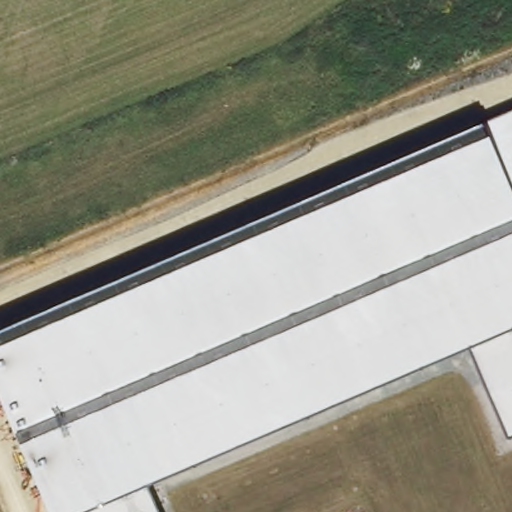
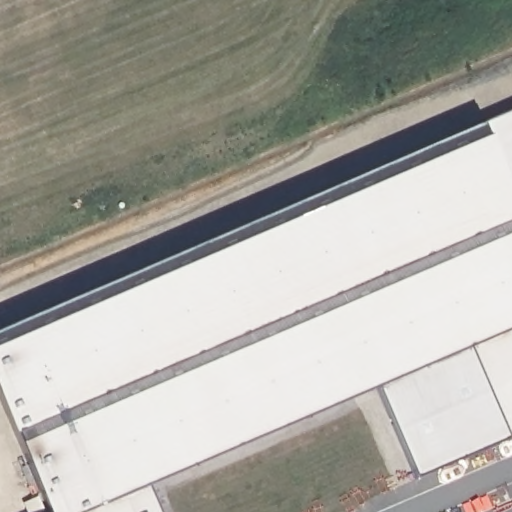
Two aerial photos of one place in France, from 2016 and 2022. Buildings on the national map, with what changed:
unchanged [(479,125),(512,111),(512,436),(509,438),(470,346),(145,486),(156,512),(50,512),(0,397),(0,330),(479,125)]
new [(416,477),(378,386),(470,346),(509,438),(416,477)]

